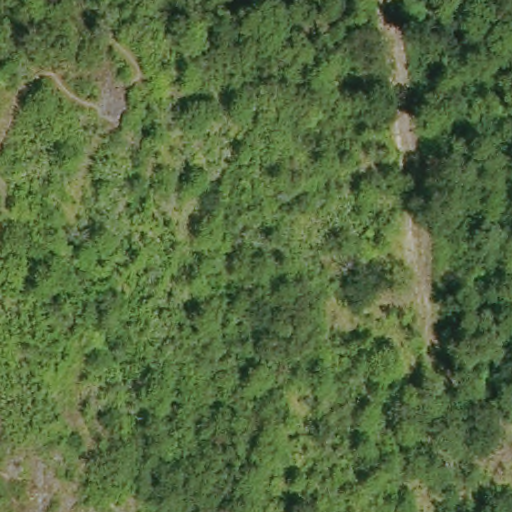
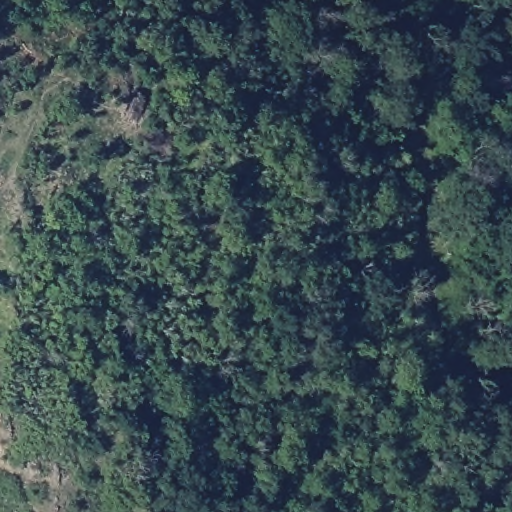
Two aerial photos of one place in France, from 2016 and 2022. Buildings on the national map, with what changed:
[]

